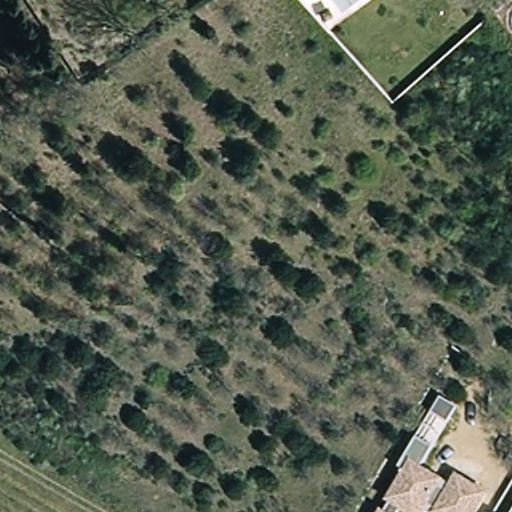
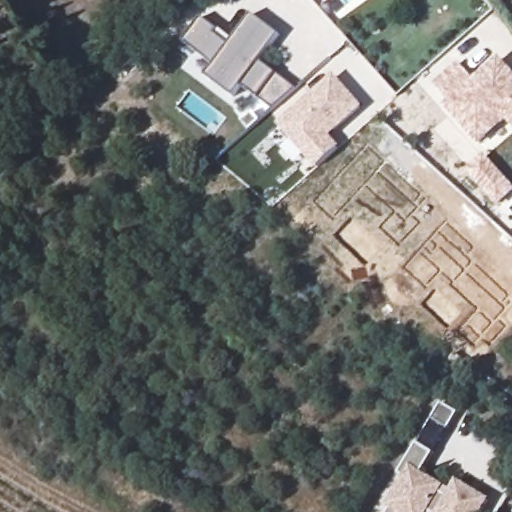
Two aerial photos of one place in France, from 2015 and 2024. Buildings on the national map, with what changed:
new [(219,28),(233,39),(230,44),(253,14),(281,35),(260,61),(297,89),(273,111),(242,86),(234,97),(206,76),(214,65),(184,41),(203,17),(219,28)]
new [(436,87),(461,65),(476,81),(501,59),(512,71),(512,127),(509,123),(481,147),(445,107),(450,102),(436,87)]
new [(325,138),(336,150),(316,169),(278,127),(332,80),(358,109),(332,132),(328,136),(325,138)]
new [(260,122),(249,132),(241,123),(252,114),(260,122)]
new [(500,209),(466,172),(486,156),(512,184),(512,198),(500,209)]
unchanged [(423,473),(452,487),(457,476),(491,498),(482,512),(388,512),(390,508),(385,506),(403,477),(399,470),(439,400),(457,412),(423,473)]

